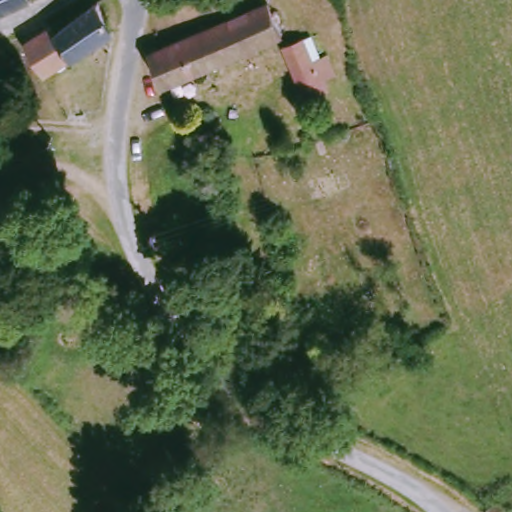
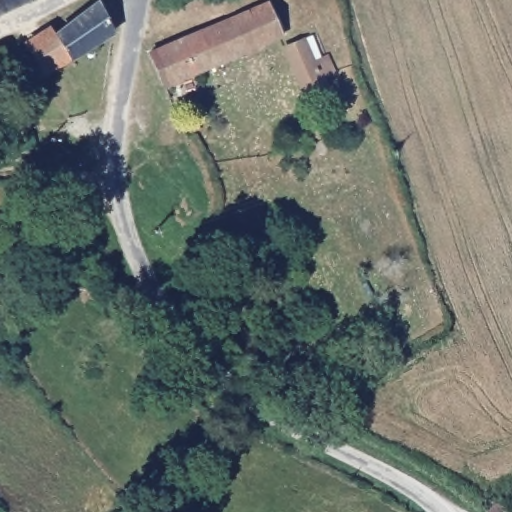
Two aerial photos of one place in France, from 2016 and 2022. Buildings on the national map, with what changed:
unchanged [(31,5),(0,19),(0,0),(28,0),(31,5)]
unchanged [(149,55),(263,4),(276,34),(162,88),(149,55)]
unchanged [(56,38),(101,6),(117,36),(71,64),(56,38)]
unchanged [(71,64),(47,79),(29,49),(53,33),(56,38),(71,64)]
unchanged [(307,39),(319,62),(334,56),(338,71),(327,80),(328,91),(310,101),(288,52),(307,39)]

